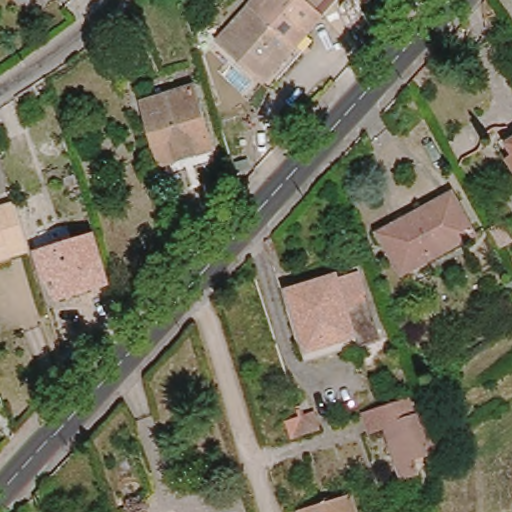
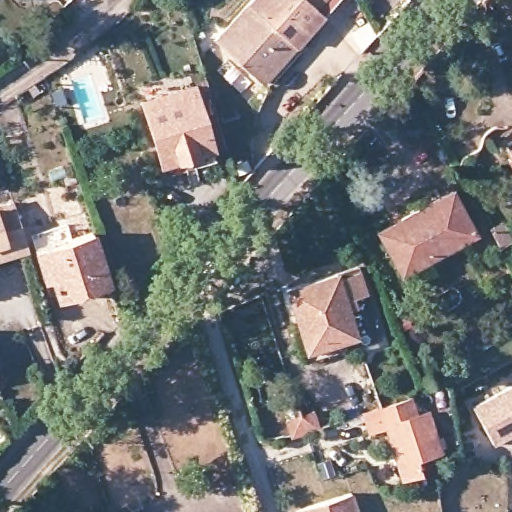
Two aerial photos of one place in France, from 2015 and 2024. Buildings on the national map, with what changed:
unchanged [(319,15),(296,39),(256,80),(213,37),(249,0),(304,0),(306,2),(319,15)]
unchanged [(306,2),(304,0),(308,0),(306,2)]
unchanged [(191,75),(216,156),(160,173),(135,93),(191,75)]
unchanged [(512,154),(509,150),(508,147),(507,145),(505,143),(508,142),(510,141),(512,140),(512,155),(512,154)]
unchanged [(504,161),(507,159),(512,156),(512,175),(504,161)]
unchanged [(472,233),(433,253),(429,255),(427,256),(423,258),(408,266),(405,267),(402,269),(399,270),(397,272),(374,229),(449,189),(472,233)]
unchanged [(24,251),(6,257),(0,260),(0,205),(8,202),(24,251)]
unchanged [(98,279),(57,293),(56,290),(55,287),(54,285),(53,281),(51,278),(50,274),(49,270),(48,267),(40,270),(33,246),(83,231),(98,279)]
unchanged [(358,266),(376,326),(358,332),(356,333),(353,334),(349,335),(346,336),(307,348),(294,307),(292,304),(291,301),(290,298),(289,295),(289,293),(288,290),(287,288),(358,266)]
new [(474,409),(512,387),(512,438),(495,447),(474,409)]
unchanged [(406,395),(413,416),(424,414),(429,452),(409,459),(415,475),(397,481),(379,426),(364,431),(358,413),(406,395)]
unchanged [(288,439),(283,419),(311,409),(318,426),(288,439)]
unchanged [(349,494),(354,512),(297,512),(297,510),(349,494)]

